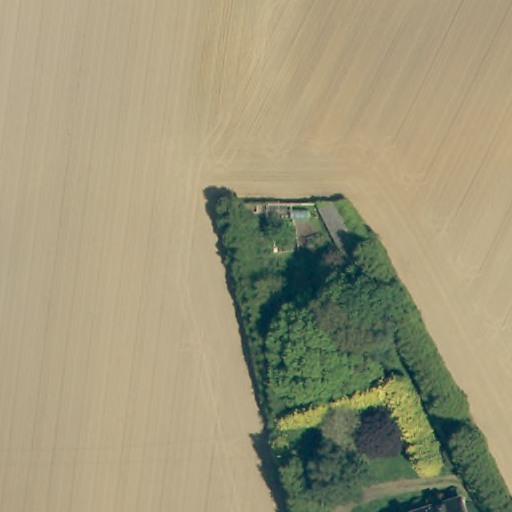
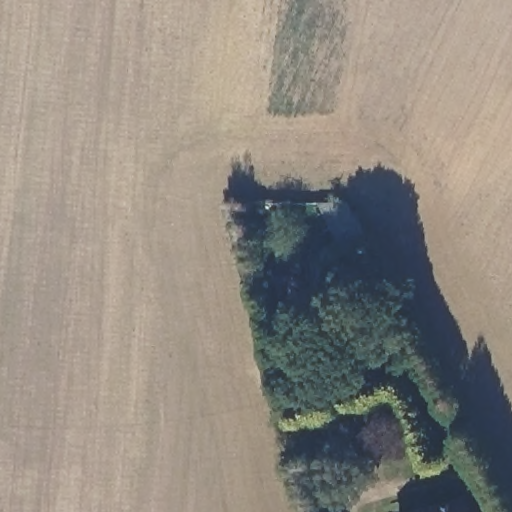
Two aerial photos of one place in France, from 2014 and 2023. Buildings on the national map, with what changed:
unchanged [(341,203),(352,204),(373,245),(350,257),(319,202),(341,203)]
unchanged [(473,507),(475,512),(455,512),(473,507)]

